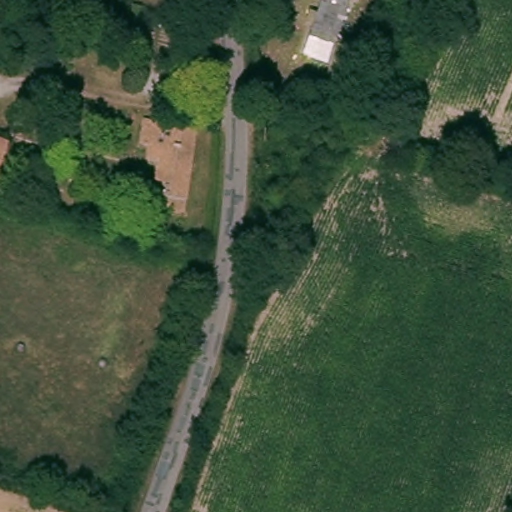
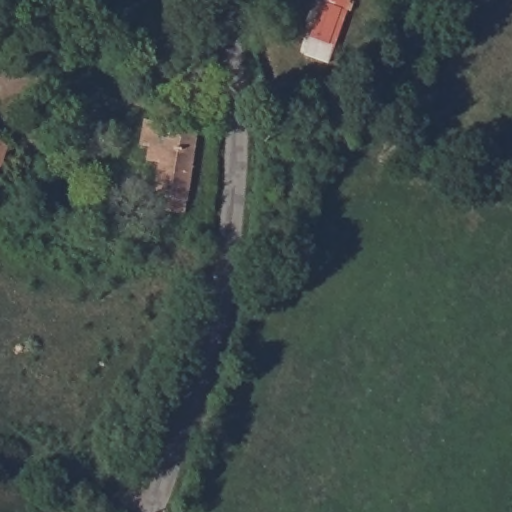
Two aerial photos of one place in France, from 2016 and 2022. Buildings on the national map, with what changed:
unchanged [(340,6),(327,40),(333,42),(325,62),(301,53),(322,0),(348,0),(345,9),(340,6)]
unchanged [(137,146),(144,122),(158,126),(162,114),(209,128),(185,216),(162,209),(165,200),(151,195),(160,169),(146,165),(150,150),(137,146)]
unchanged [(18,139),(11,160),(4,181),(0,180),(0,133),(18,139)]

